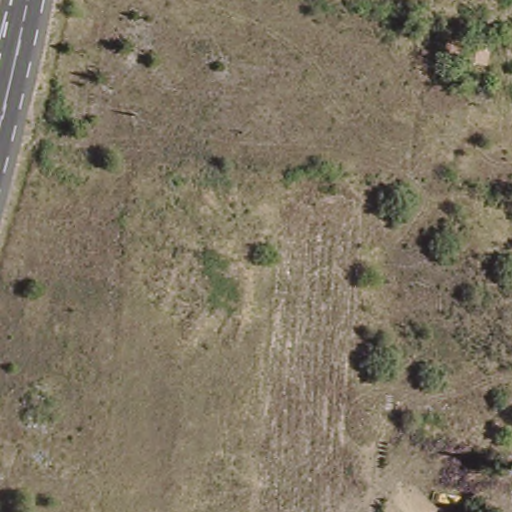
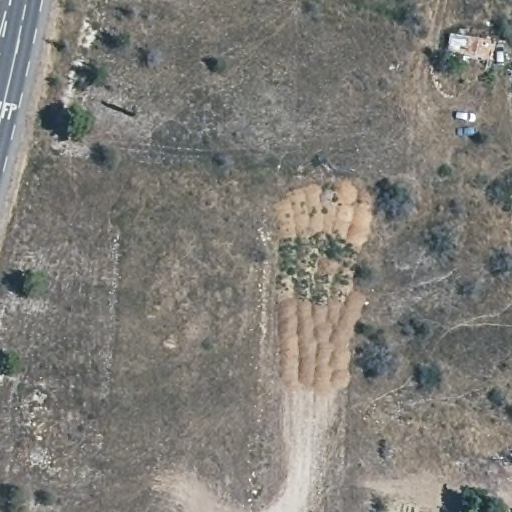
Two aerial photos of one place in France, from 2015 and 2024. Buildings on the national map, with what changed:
unchanged [(441,22),(480,27),(478,47),(437,42),(441,22)]

